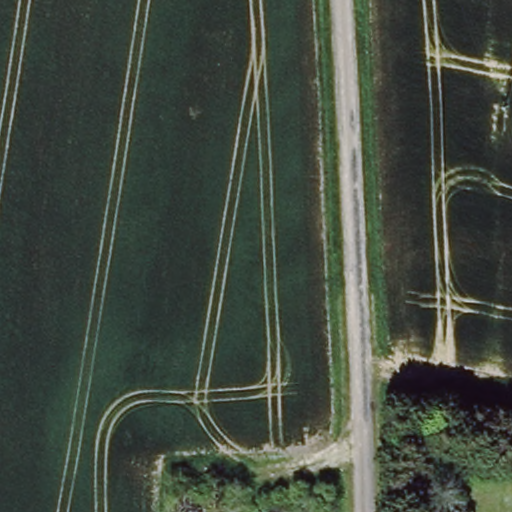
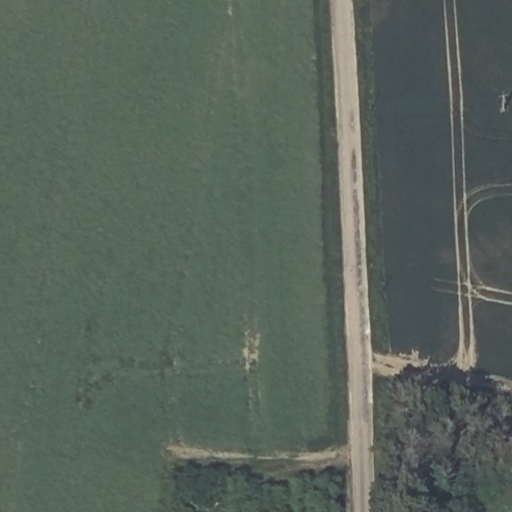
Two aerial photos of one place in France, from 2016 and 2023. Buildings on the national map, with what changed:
unchanged [(279,512),(243,512),(241,498),(279,498),(279,512)]

